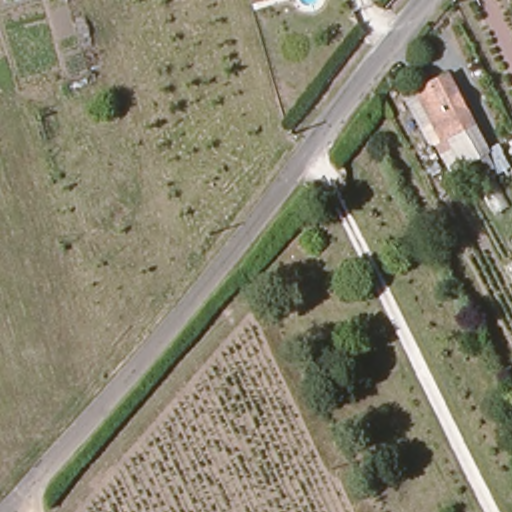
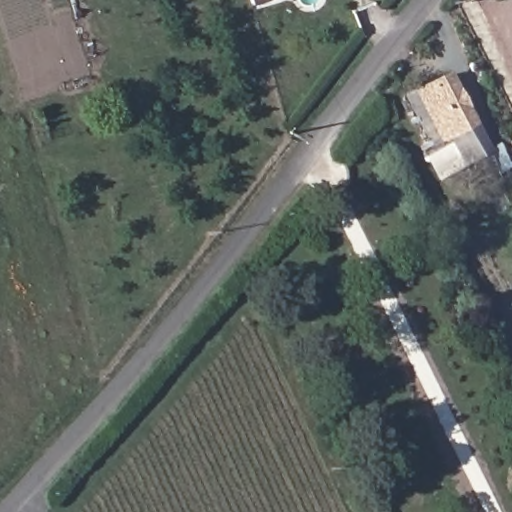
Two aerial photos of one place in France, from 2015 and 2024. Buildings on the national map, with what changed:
unchanged [(430,97),(463,81),(484,133),(462,143),(468,157),(456,162),(430,97)]

